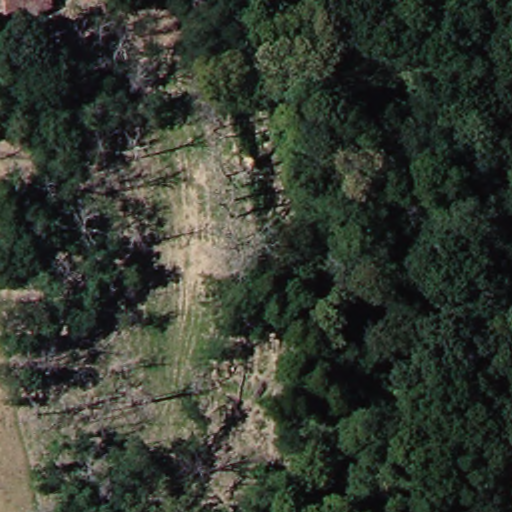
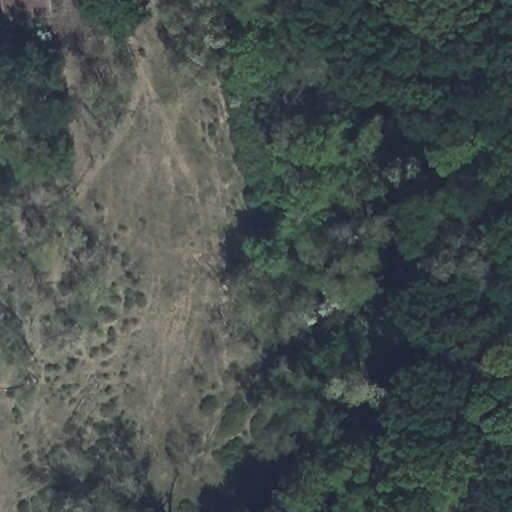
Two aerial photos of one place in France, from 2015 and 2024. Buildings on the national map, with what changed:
unchanged [(6,23),(1,0),(41,0),(44,16),(6,23)]

